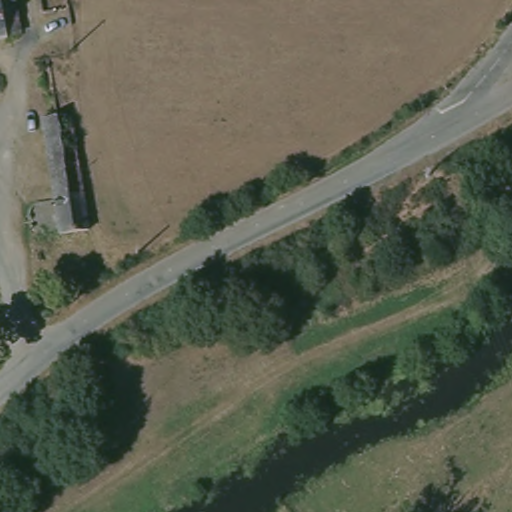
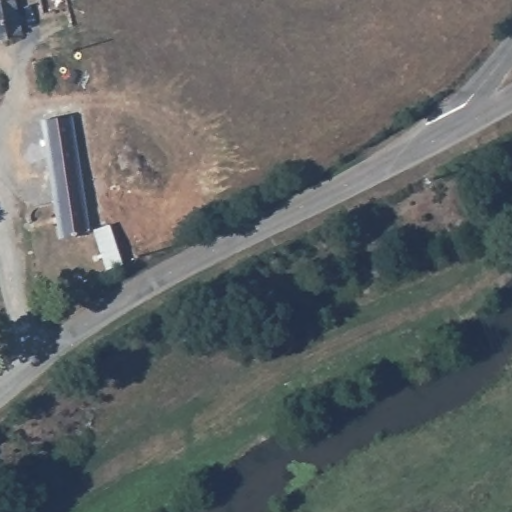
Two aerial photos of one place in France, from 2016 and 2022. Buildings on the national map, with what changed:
unchanged [(19,1),(24,37),(0,43),(0,0),(22,0),(19,1)]
unchanged [(58,245),(39,123),(67,119),(90,236),(58,245)]

